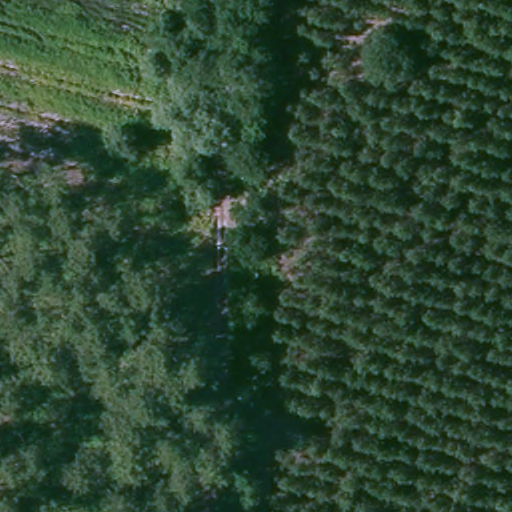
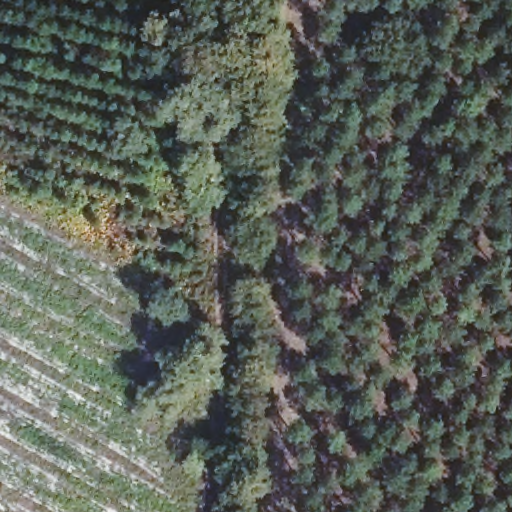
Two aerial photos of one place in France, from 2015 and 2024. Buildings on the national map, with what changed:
[]

